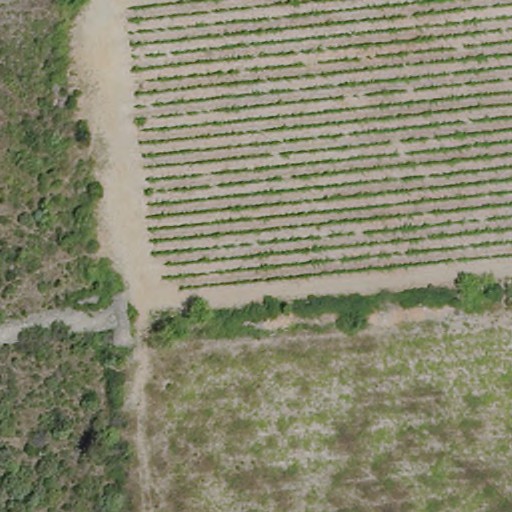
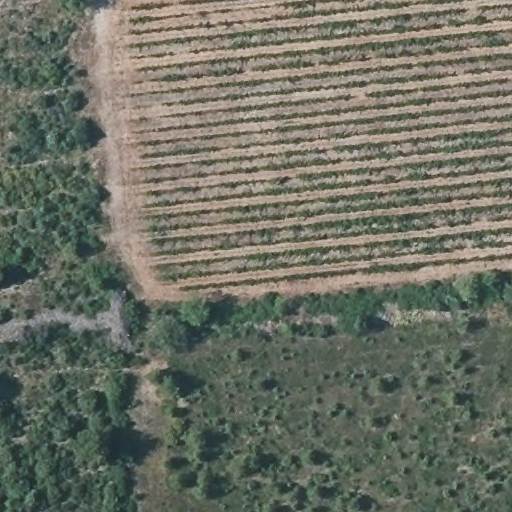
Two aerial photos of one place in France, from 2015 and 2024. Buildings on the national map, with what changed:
[]

